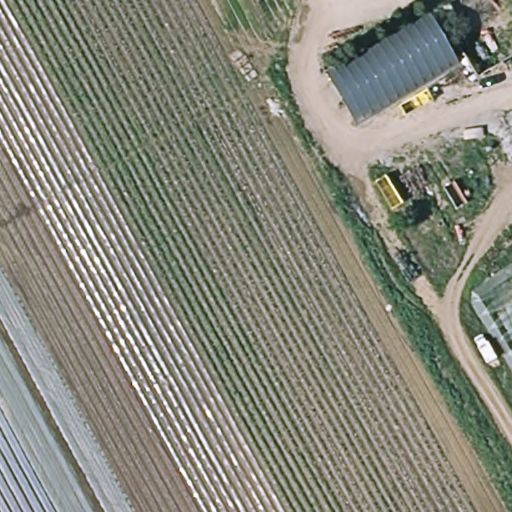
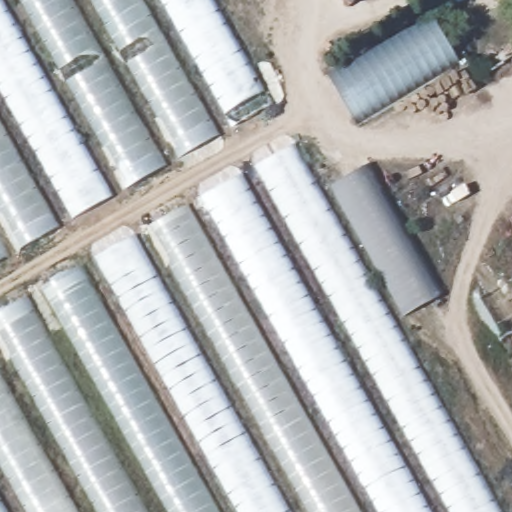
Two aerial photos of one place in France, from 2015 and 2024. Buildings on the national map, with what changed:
new [(0,259),(0,0),(206,0),(274,104),(0,259)]
unchanged [(457,60),(356,122),(331,79),(430,12),(457,60)]
new [(0,312),(296,145),(506,512),(0,512),(0,312)]
new [(368,167),(439,297),(404,316),(333,187),(368,167)]
unchanged [(479,297),(512,278),(512,353),(479,297)]

